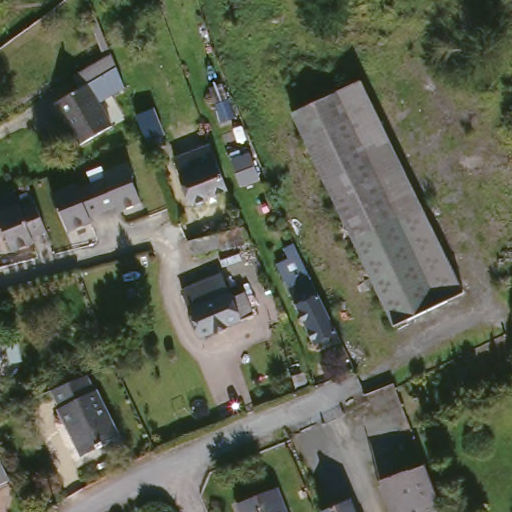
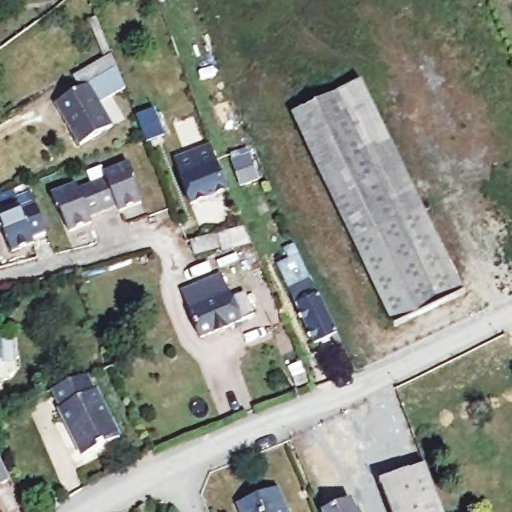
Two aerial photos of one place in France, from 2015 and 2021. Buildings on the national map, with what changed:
unchanged [(81,10),(78,3),(81,1),(81,0),(89,0),(91,6),(81,10)]
unchanged [(98,108),(111,131),(80,149),(56,108),(78,94),(71,81),(103,63),(96,43),(102,40),(110,59),(116,73),(123,92),(98,108)]
unchanged [(362,84),(464,295),(395,329),(294,118),(362,84)]
unchanged [(199,144),(197,139),(196,139),(192,129),(200,126),(206,143),(205,143),(223,189),(189,202),(171,155),(199,144)]
unchanged [(120,209),(118,204),(90,215),(92,219),(70,229),(61,207),(58,204),(53,190),(77,180),(78,185),(106,174),(105,169),(128,159),(134,174),(133,178),(142,199),(120,209)]
unchanged [(233,165),(251,159),(260,185),(242,191),(233,165)]
unchanged [(36,238),(38,244),(14,252),(7,232),(2,229),(0,222),(0,215),(22,206),(23,210),(37,205),(49,233),(36,238)]
unchanged [(195,258),(191,244),(195,243),(244,230),(250,246),(195,258)]
unchanged [(298,254),(337,335),(316,345),(277,264),(287,259),(284,253),(295,248),(298,254)]
unchanged [(217,279),(226,300),(241,294),(249,315),(234,322),(235,324),(197,339),(179,294),(217,279)]
unchanged [(56,404),(58,403),(50,387),(85,372),(92,388),(94,387),(116,434),(76,452),(56,404)]
unchanged [(0,488),(0,462),(10,484),(0,488)]
unchanged [(443,512),(392,512),(380,483),(425,466),(443,512)]
unchanged [(285,512),(242,512),(239,506),(276,491),(285,512)]
unchanged [(350,499),(356,512),(321,512),(350,499)]

